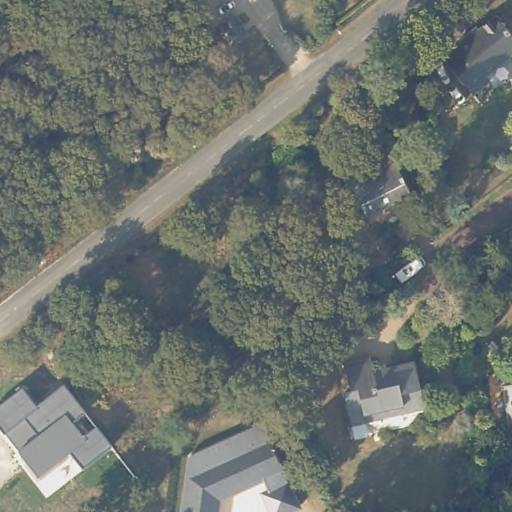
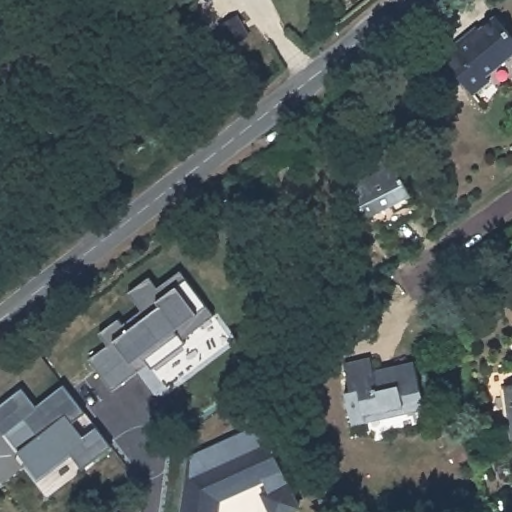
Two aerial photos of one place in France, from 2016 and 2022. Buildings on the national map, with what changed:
unchanged [(233,43),(221,21),(215,11),(229,3),(235,13),(247,35),(233,43)]
unchanged [(467,89),(439,52),(451,42),(449,40),(464,28),(474,21),(476,25),(492,12),(512,38),(512,47),(481,71),(484,75),(480,78),(467,89)]
unchanged [(422,203),(392,225),(379,205),(368,214),(341,173),(381,146),(422,203)]
new [(88,360),(108,344),(99,333),(119,318),(123,323),(142,309),(128,292),(150,276),(157,286),(180,270),(215,315),(184,339),(185,342),(153,368),(150,363),(113,391),(88,360)]
unchanged [(374,374),(415,366),(425,411),(349,426),(342,397),(350,395),(345,368),(371,363),(374,374)]
unchanged [(504,384),(512,383),(512,440),(509,440),(504,384)]
unchanged [(37,407),(62,386),(85,412),(72,423),(83,436),(94,427),(112,448),(84,469),(71,453),(41,478),(0,427),(0,405),(22,388),(37,407)]
unchanged [(261,425),(302,509),(294,512),(272,512),(262,483),(221,501),(219,512),(180,512),(186,456),(261,425)]

